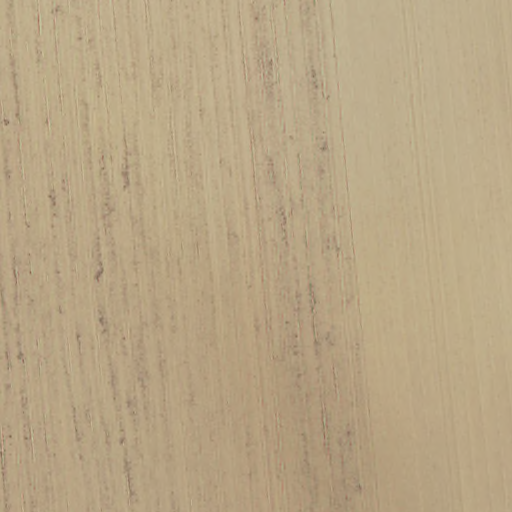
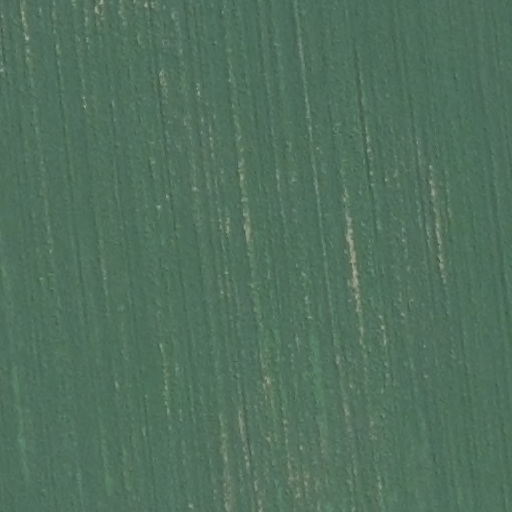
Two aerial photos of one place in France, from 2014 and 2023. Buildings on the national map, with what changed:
[]

